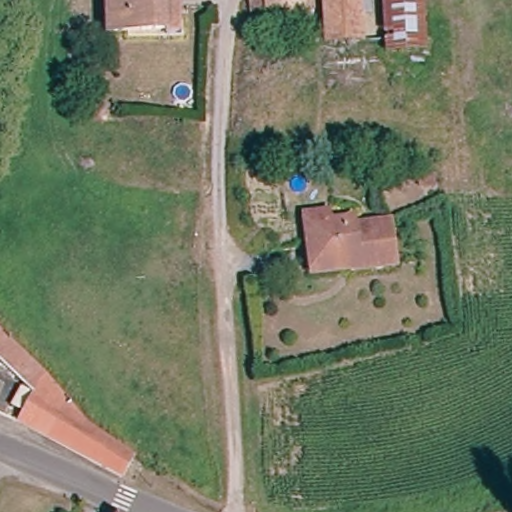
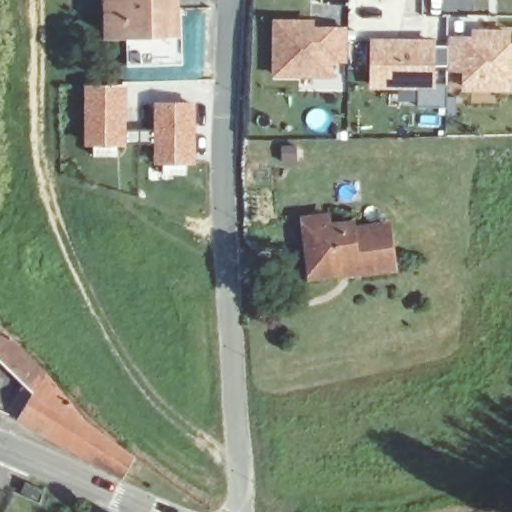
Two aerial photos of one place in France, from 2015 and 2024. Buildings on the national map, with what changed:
unchanged [(182,44),(100,48),(100,0),(178,0),(182,44)]
new [(348,60),(331,60),(331,75),(275,75),(276,22),(312,22),(312,30),(348,30),(348,60)]
new [(470,29),(510,30),(511,42),(512,42),(512,92),(462,93),(462,73),(448,72),(447,37),(470,36),(470,29)]
new [(432,87),(372,86),(373,42),(433,42),(432,87)]
new [(83,84),(128,84),(127,130),(140,130),(140,142),(127,142),(126,145),(117,146),(117,157),(92,156),(92,146),(83,146),(83,84)]
new [(153,101),(196,102),(196,164),(186,165),(186,176),(162,177),(162,165),(153,165),(153,101)]
unchanged [(350,238),(390,234),(395,277),(352,282),(351,275),(311,281),(305,239),(303,224),(324,221),(326,236),(350,233),(350,238)]
unchanged [(19,380),(0,360),(0,320),(134,453),(118,477),(20,412),(6,403),(19,380)]

